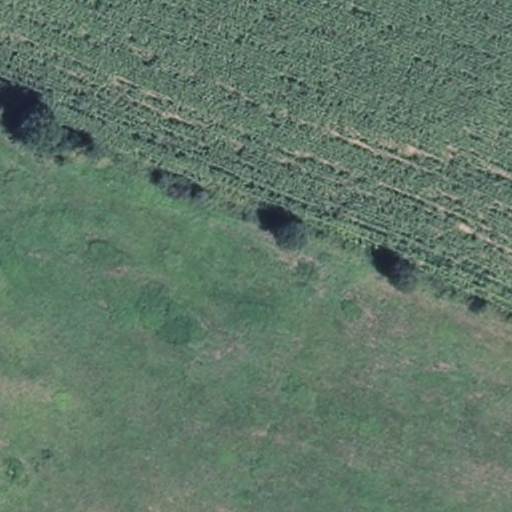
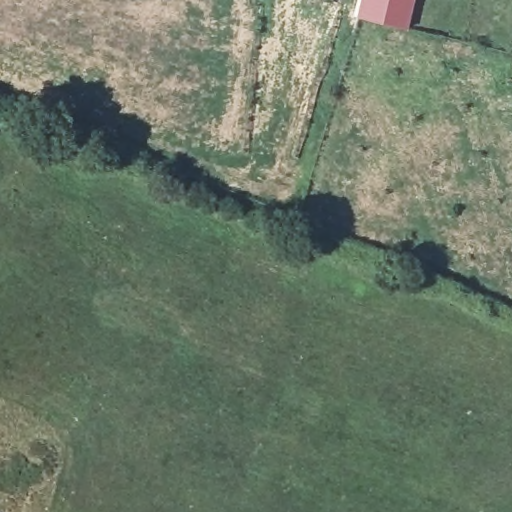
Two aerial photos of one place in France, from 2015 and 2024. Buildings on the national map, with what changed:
new [(353,13),(357,0),(412,0),(405,26),(353,13)]

